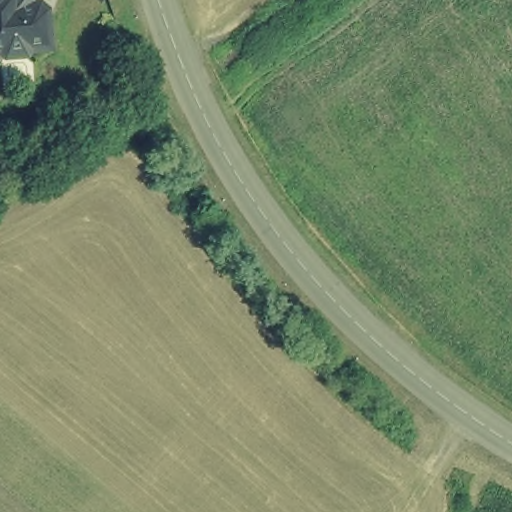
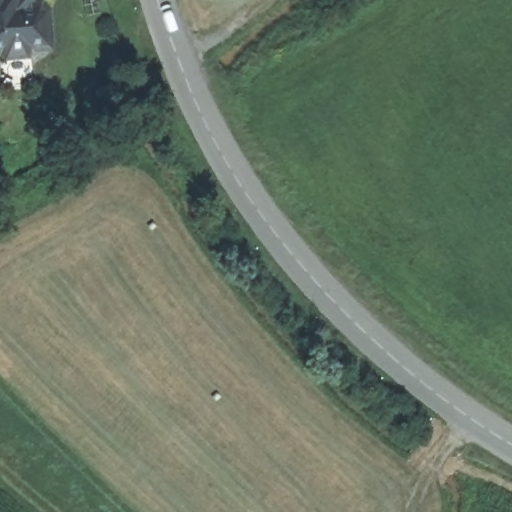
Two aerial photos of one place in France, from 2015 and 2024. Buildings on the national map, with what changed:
unchanged [(44,2),(51,6),(52,45),(30,46),(29,54),(9,55),(7,50),(0,50),(0,0),(26,0),(29,3),(44,2)]

